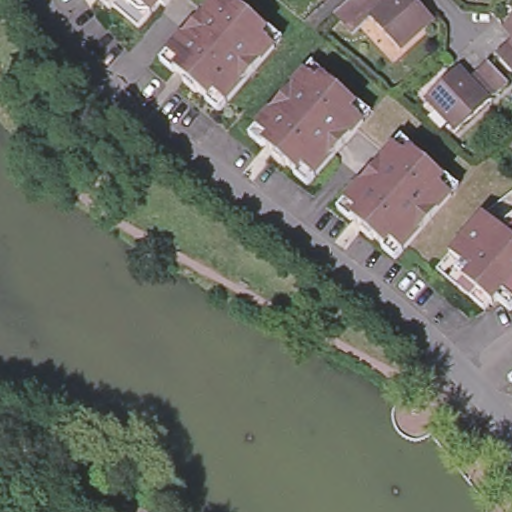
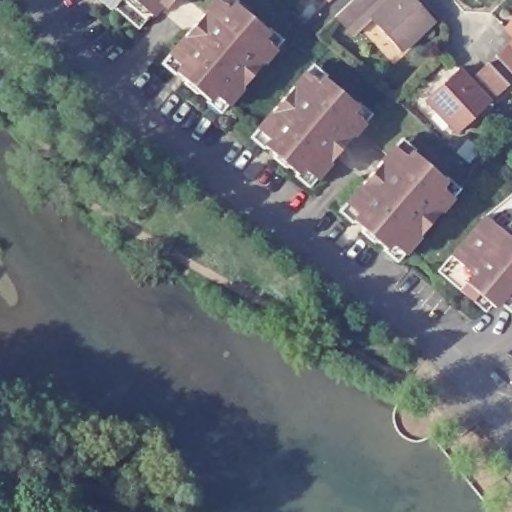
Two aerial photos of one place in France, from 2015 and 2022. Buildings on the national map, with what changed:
unchanged [(138,25),(111,3),(108,7),(101,0),(167,0),(163,5),(158,0),(138,25)]
unchanged [(268,30),(279,41),(273,49),(219,112),(196,93),(193,97),(181,86),(184,82),(161,62),(214,0),(233,0),(235,2),(233,4),(266,32),(268,30)]
unchanged [(321,0),(329,0),(324,5),(321,0)]
unchanged [(368,21),(349,39),(331,20),(353,0),(379,0),(385,6),(368,21)]
unchanged [(398,53),(368,21),(385,6),(391,0),(410,0),(431,23),(398,53)]
unchanged [(512,21),(512,41),(502,31),(512,21)]
unchanged [(494,58),(505,48),(512,41),(512,79),(493,59),(494,58)]
unchanged [(356,105),(369,116),(362,124),(308,187),(284,167),(283,169),(269,158),(272,156),(249,136),(304,73),(311,66),(324,76),(321,78),(355,106),(356,105)]
unchanged [(426,103),(459,74),(469,85),(488,67),(507,88),(488,105),(454,135),(426,103)]
unchanged [(446,181),(458,191),(451,199),(396,262),(373,242),(371,245),(358,234),(361,231),(338,212),(393,148),(400,140),(412,151),(410,153),(444,182),(446,181)]
unchanged [(492,308),(463,281),(472,271),(449,253),(483,214),(508,235),(512,231),(512,303),(504,296),(492,308)]

